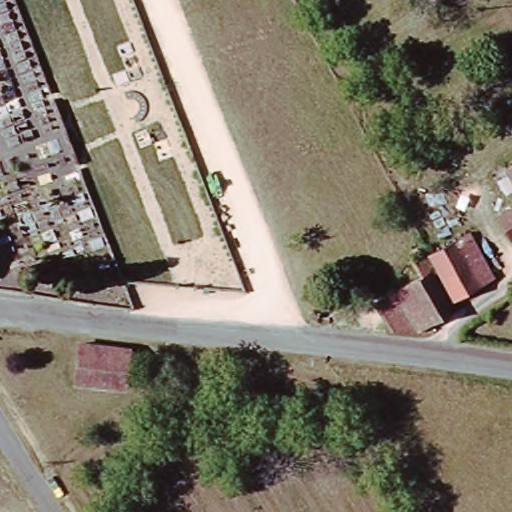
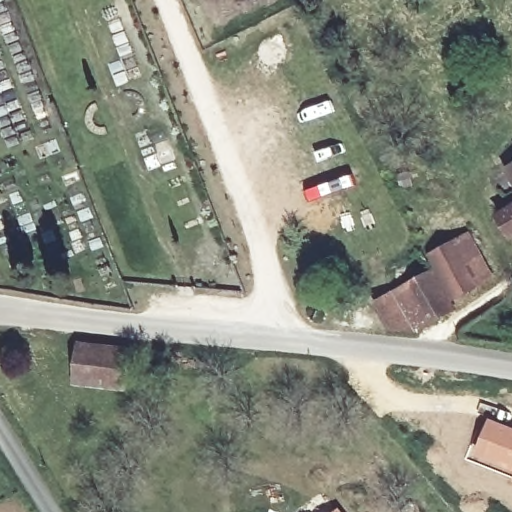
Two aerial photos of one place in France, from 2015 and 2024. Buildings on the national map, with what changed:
unchanged [(512,170),(512,177),(509,172),(512,170)]
unchanged [(512,239),(509,240),(498,218),(512,210),(512,239)]
unchanged [(428,254),(454,237),(467,230),(494,276),(482,285),(454,300),(428,254)]
unchanged [(417,286),(403,260),(421,250),(454,314),(416,335),(390,332),(378,308),(417,286)]
unchanged [(80,345),(133,352),(128,395),(78,387),(80,345)]
new [(512,427),(512,477),(471,460),(489,417),(512,427)]
new [(343,512),(332,512),(339,507),(343,512)]

